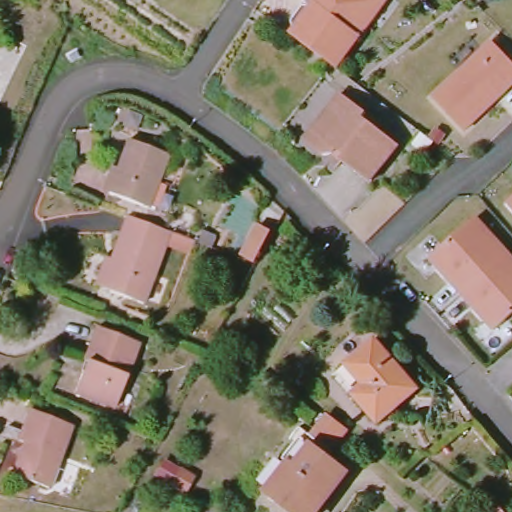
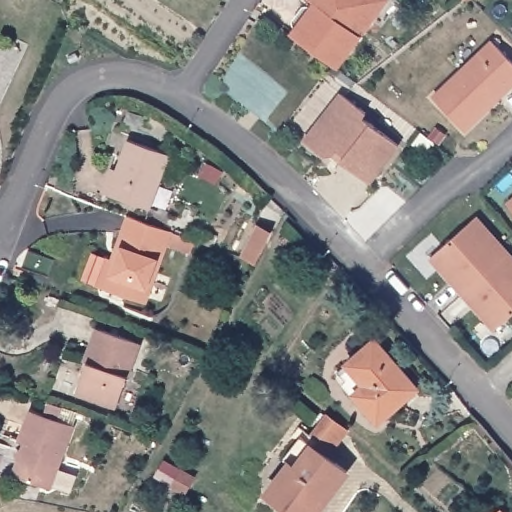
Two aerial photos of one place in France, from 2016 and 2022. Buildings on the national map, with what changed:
unchanged [(308,46),(290,33),(314,1),(313,0),(385,0),(335,66),(308,46)]
unchanged [(465,130),(432,93),(490,38),(512,61),(512,84),(465,130)]
unchanged [(336,88),(364,108),(360,114),(395,141),(366,179),(335,157),(340,151),(333,146),(329,151),(316,149),(299,135),(336,88)]
unchanged [(432,140),(424,152),(423,152),(411,143),(412,141),(420,131),(432,140)]
unchanged [(110,166),(118,168),(128,139),(168,155),(148,208),(108,194),(101,191),(110,166)]
unchanged [(430,255),(475,215),(507,251),(462,291),(430,255)]
unchanged [(106,255),(112,259),(128,217),(170,232),(144,304),(102,288),(94,286),(106,255)]
unchanged [(255,223),(268,228),(256,262),(242,257),(255,223)]
unchanged [(462,291),(507,251),(512,257),(512,312),(494,328),(462,291)]
unchanged [(85,365),(91,368),(92,361),(86,358),(97,327),(140,342),(116,409),(76,395),(85,365)]
unchanged [(412,387),(374,422),(349,394),(331,373),(341,363),(369,338),(412,387)]
unchanged [(26,409),(67,424),(46,488),(7,475),(17,449),(21,451),(23,444),(16,441),(26,409)]
unchanged [(354,430),(332,457),(305,438),(327,413),(354,430)]
unchanged [(292,512),(267,493),(290,462),(283,457),(300,434),(309,442),(347,471),(315,512),(292,512)]
unchanged [(504,512),(496,512),(501,508),(504,512)]

